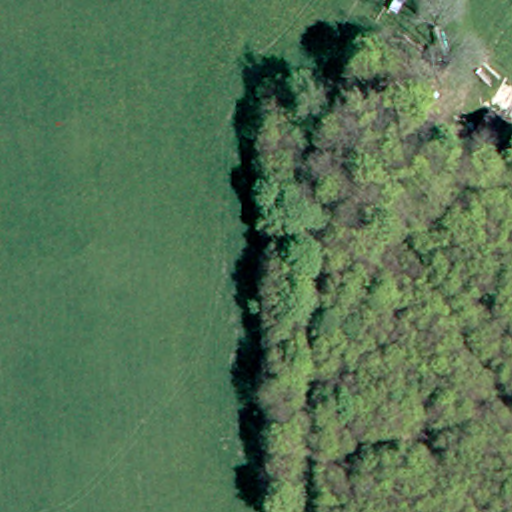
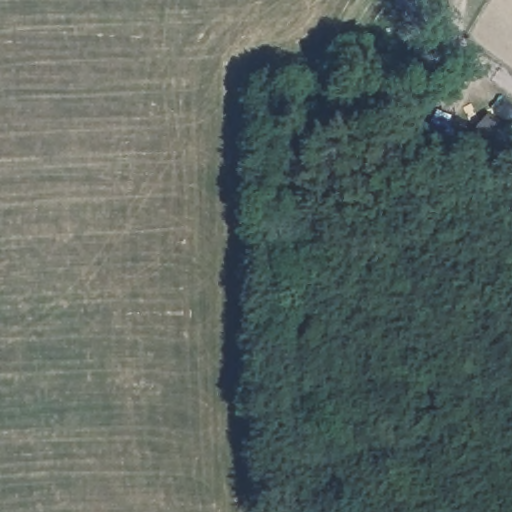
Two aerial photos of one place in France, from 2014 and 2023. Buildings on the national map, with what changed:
unchanged [(497,152),(479,137),(492,120),(512,135),(497,152)]

